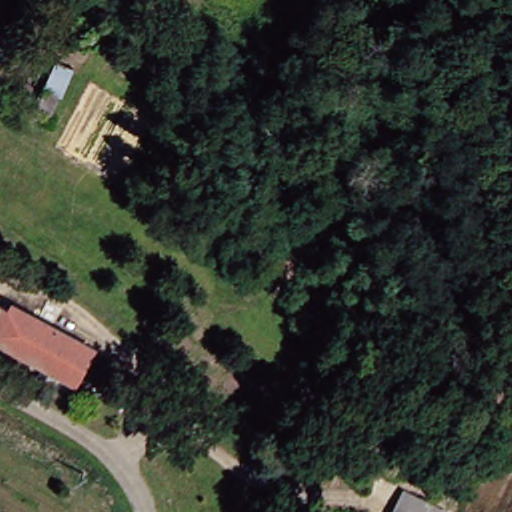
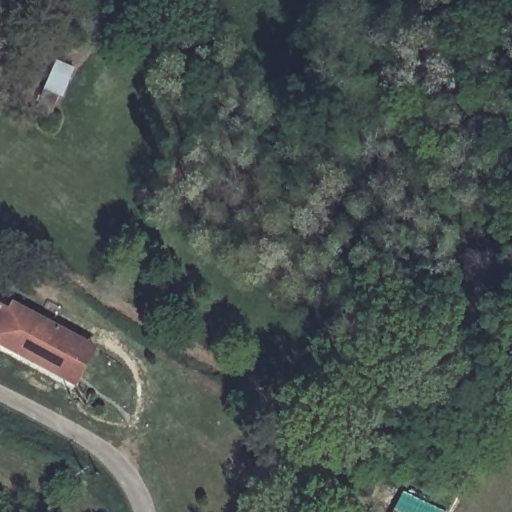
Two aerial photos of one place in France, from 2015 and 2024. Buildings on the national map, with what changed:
unchanged [(73,70),(61,99),(58,97),(51,115),(38,109),(56,62),(73,70)]
unchanged [(31,367),(0,351),(0,307),(1,304),(75,342),(86,348),(66,386),(31,367)]
unchanged [(438,511),(438,512),(394,512),(402,495),(438,511)]

